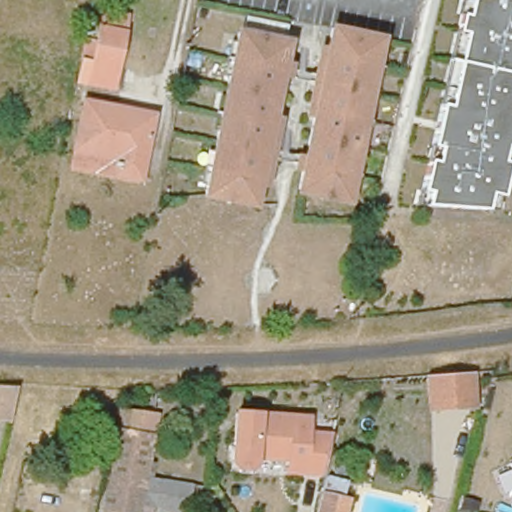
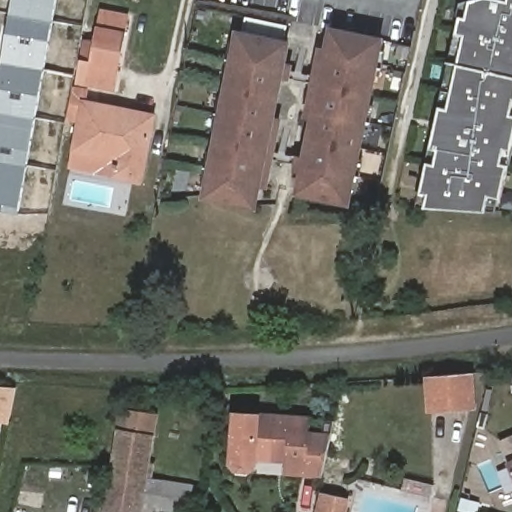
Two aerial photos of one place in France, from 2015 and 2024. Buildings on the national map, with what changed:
new [(19,214),(0,210),(0,71),(13,0),(57,0),(19,214)]
unchanged [(491,194),(486,210),(418,205),(463,1),(469,0),(512,0),(512,156),(503,196),(491,194)]
unchanged [(283,27),(280,42),(285,43),(281,62),(286,63),(282,81),(277,80),(270,116),(275,117),(273,127),(217,115),(214,114),(217,96),(222,97),(225,80),(220,79),(228,42),(233,43),(235,33),(240,34),(242,19),(283,27)]
unchanged [(121,33),(112,87),(77,81),(81,60),(91,62),(97,28),(121,33)]
unchanged [(320,48),(325,49),(328,29),(378,39),(376,49),(381,50),(374,86),(369,85),(365,103),(370,104),(366,126),(354,123),(352,123),(344,121),(342,121),(329,118),(306,113),(320,48)]
unchanged [(139,185),(65,169),(80,96),(154,113),(139,185)]
unchanged [(363,140),(358,139),(355,157),(360,157),(352,194),(348,193),(346,203),(296,193),(300,174),(295,173),(298,155),(303,156),(310,120),(305,119),(306,113),(329,118),(342,121),(344,121),(352,123),(354,123),(366,126),(363,140)]
unchanged [(261,188),(256,187),(252,207),(202,197),(205,187),(200,186),(206,150),(211,151),(215,133),(210,132),(214,114),(217,115),(273,127),(261,188)]
unchanged [(376,218),(381,194),(404,200),(398,224),(376,218)]
unchanged [(471,408),(432,411),(430,386),(470,384),(471,408)]
unchanged [(11,391),(5,419),(0,418),(0,390),(11,391)]
unchanged [(144,403),(142,425),(157,426),(151,473),(168,478),(165,506),(145,508),(144,512),(105,512),(121,401),(144,403)]
unchanged [(310,429),(332,433),(324,477),(281,475),(285,460),(262,458),(255,470),(239,471),(228,461),(234,409),(311,416),(310,429)]
unchanged [(349,476),(346,493),(352,495),(349,512),(322,512),(330,471),(349,476)]
unchanged [(203,485),(200,509),(172,505),(175,482),(203,485)]

